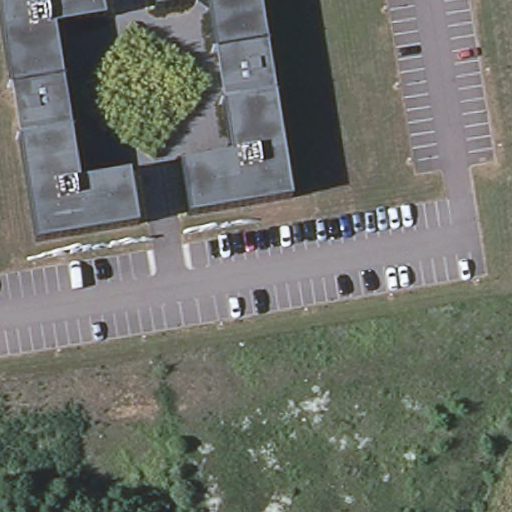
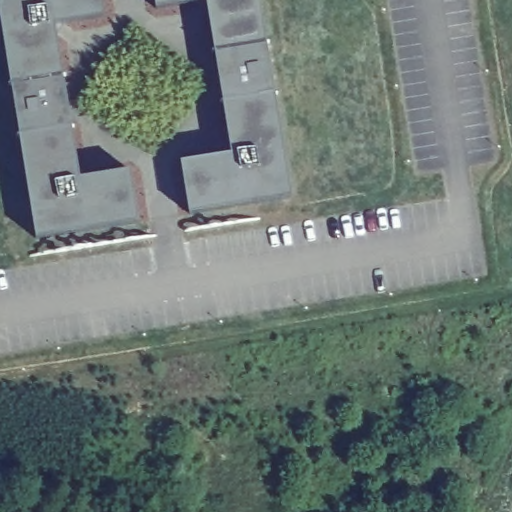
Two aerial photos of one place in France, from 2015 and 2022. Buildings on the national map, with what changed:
unchanged [(56,25),(81,179),(131,169),(139,226),(37,238),(0,10),(0,0),(102,0),(105,17),(56,25)]
unchanged [(156,0),(205,0),(157,9),(156,0)]
unchanged [(191,214),(182,165),(232,153),(205,0),(261,0),(293,199),(191,214)]

